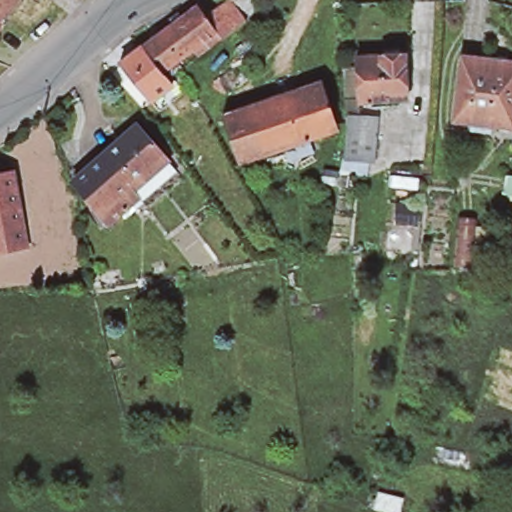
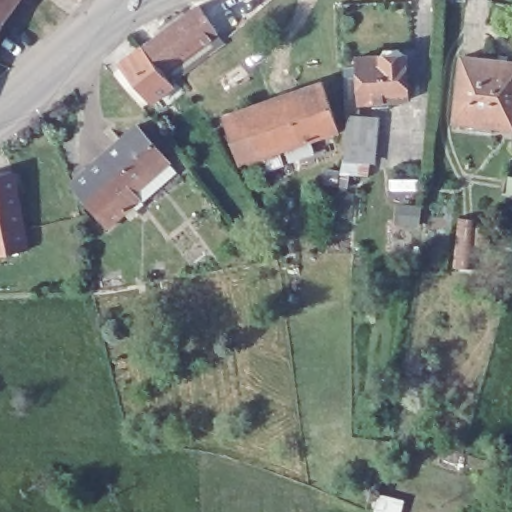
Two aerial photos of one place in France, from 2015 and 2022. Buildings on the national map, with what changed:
unchanged [(2,20),(0,19),(0,0),(18,0),(2,20)]
unchanged [(233,0),(238,0),(249,16),(237,26),(213,46),(210,42),(196,22),(222,5),(233,0)]
unchanged [(153,77),(134,51),(188,11),(196,22),(210,42),(204,46),(201,42),(190,50),(192,54),(185,59),(183,55),(153,77)]
unchanged [(0,26),(0,19),(2,20),(0,26)]
unchanged [(386,50),(400,49),(402,54),(405,54),(408,100),(359,104),(355,57),(382,55),(386,50)]
unchanged [(153,77),(158,84),(164,80),(177,98),(167,106),(157,94),(140,108),(109,70),(134,51),(153,77)]
unchanged [(468,131),(469,124),(454,122),(462,57),(512,64),(512,128),(491,126),(490,134),(468,131)]
unchanged [(339,130),(300,143),(284,95),(322,82),(339,130)]
unchanged [(300,143),(239,164),(222,116),(284,95),(300,143)]
unchanged [(189,106),(184,109),(181,103),(185,100),(189,106)]
unchanged [(375,162),(345,159),(349,116),(377,119),(375,162)]
unchanged [(164,161),(128,191),(135,199),(102,228),(71,190),(68,183),(134,126),(164,161)]
unchanged [(0,256),(0,174),(12,172),(27,251),(0,256)]
unchanged [(503,193),(506,175),(512,177),(512,195),(503,193)]

